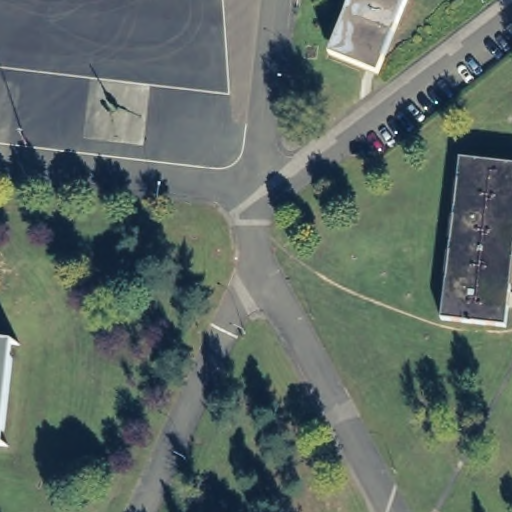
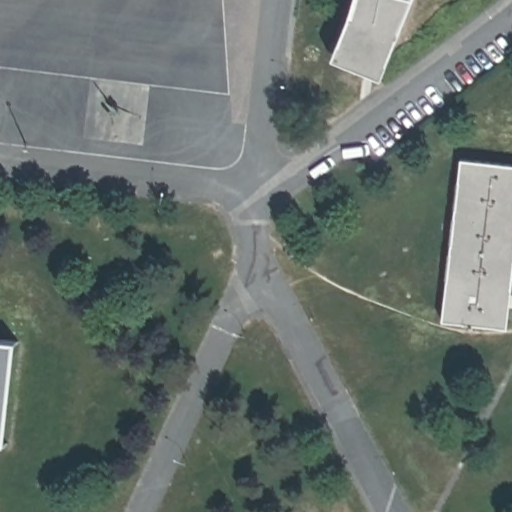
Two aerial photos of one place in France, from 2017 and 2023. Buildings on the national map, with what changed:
unchanged [(379,76),(329,59),(353,0),(408,0),(379,76)]
unchanged [(439,322),(461,156),(512,164),(512,273),(504,328),(439,322)]
unchanged [(14,341),(1,442),(0,442),(0,339),(14,341)]

